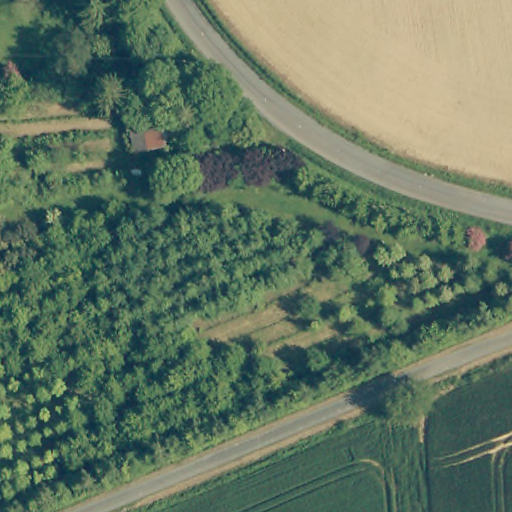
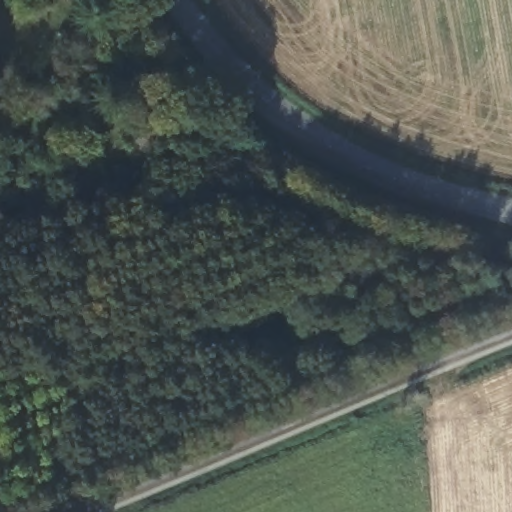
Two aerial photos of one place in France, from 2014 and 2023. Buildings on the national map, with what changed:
unchanged [(165,107),(175,142),(156,147),(147,112),(165,107)]

